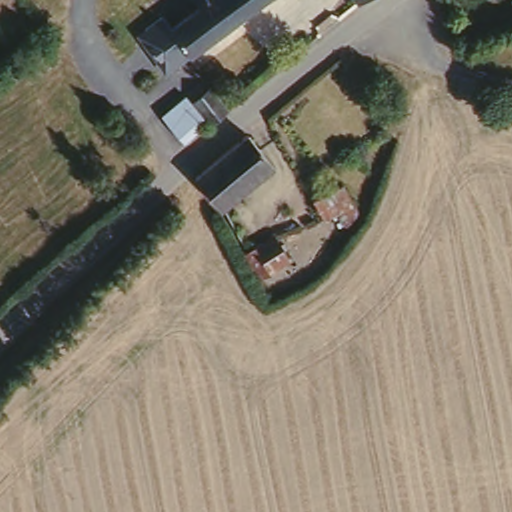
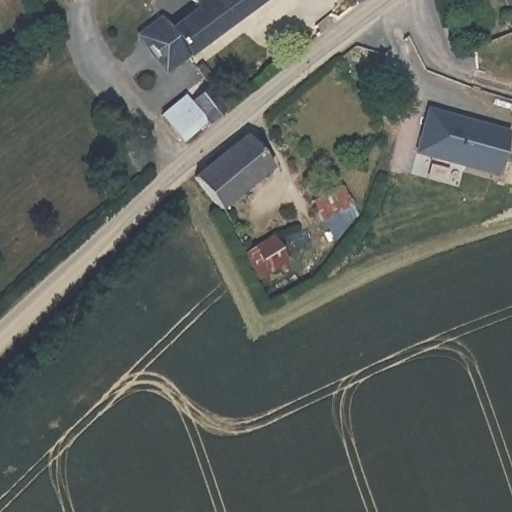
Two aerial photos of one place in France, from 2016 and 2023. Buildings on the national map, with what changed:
unchanged [(171,68),(166,61),(137,84),(114,53),(147,28),(163,16),(167,22),(194,2),(192,0),(267,0),(171,68)]
unchanged [(207,119),(184,138),(161,110),(185,89),(191,97),(208,83),(229,105),(228,106),(209,121),(207,119)]
new [(510,129),(499,176),(415,154),(428,106),(510,129)]
unchanged [(276,164),(228,206),(224,211),(198,176),(251,134),(276,164)]
unchanged [(343,183),(358,213),(346,227),(340,210),(323,222),(311,200),(343,183)]
unchanged [(274,229),(289,256),(259,274),(242,248),(246,245),(274,229)]

